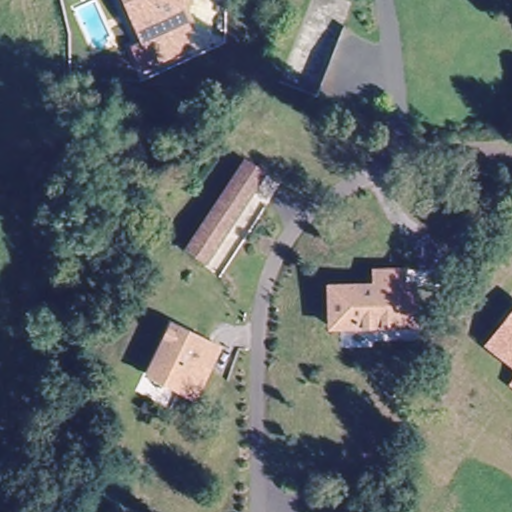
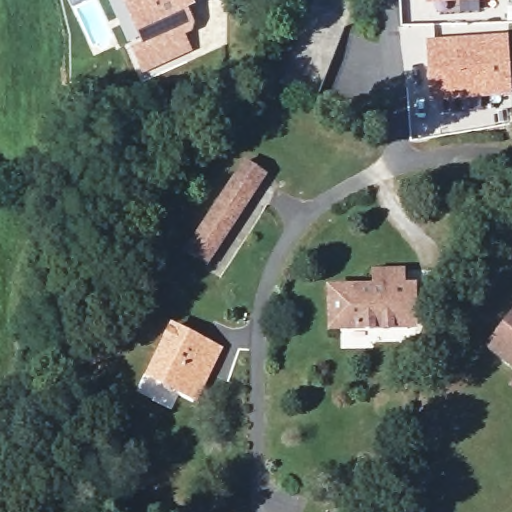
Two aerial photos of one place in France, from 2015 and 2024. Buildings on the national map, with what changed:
unchanged [(141,72),(133,52),(143,47),(131,20),(135,19),(128,1),(130,0),(187,0),(190,8),(183,11),(191,29),(190,32),(180,37),(186,53),(157,65),(141,72)]
new [(424,3),(424,0),(481,0),(473,1),(424,3)]
new [(508,33),(512,87),(512,94),(427,101),(423,38),(508,33)]
unchanged [(188,247),(239,157),(263,170),(211,261),(188,247)]
unchanged [(411,327),(330,331),(327,292),(371,290),(370,274),(398,273),(399,289),(409,288),(411,327)]
unchanged [(491,348),(512,321),(512,364),(491,348)]
unchanged [(167,331),(176,335),(180,336),(200,344),(215,350),(206,373),(196,400),(149,381),(148,381),(167,331)]

